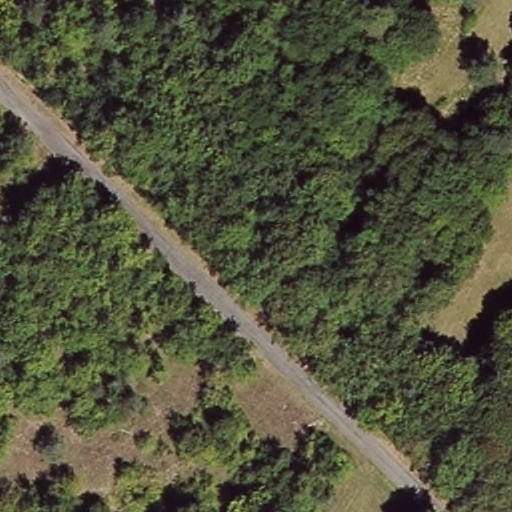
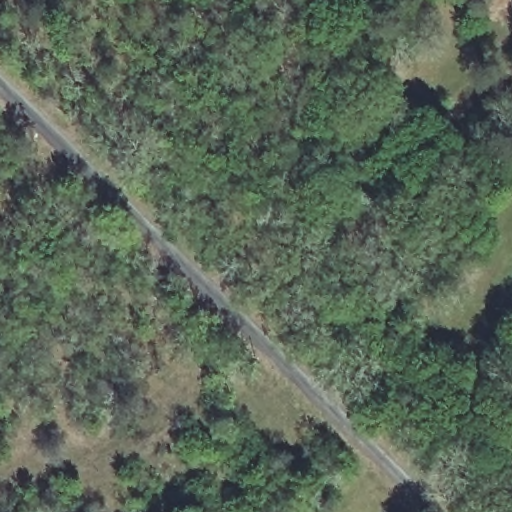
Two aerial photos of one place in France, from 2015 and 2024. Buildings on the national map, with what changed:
[]

